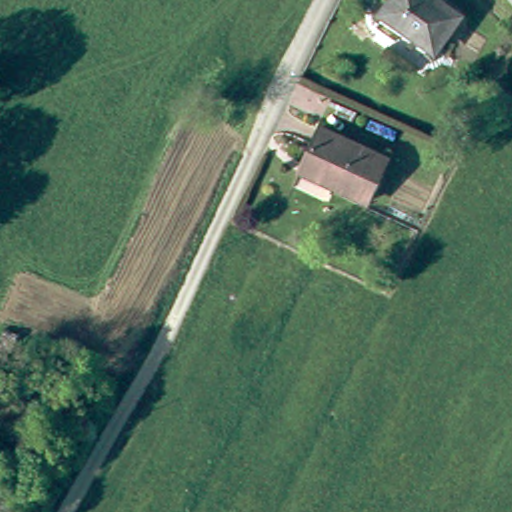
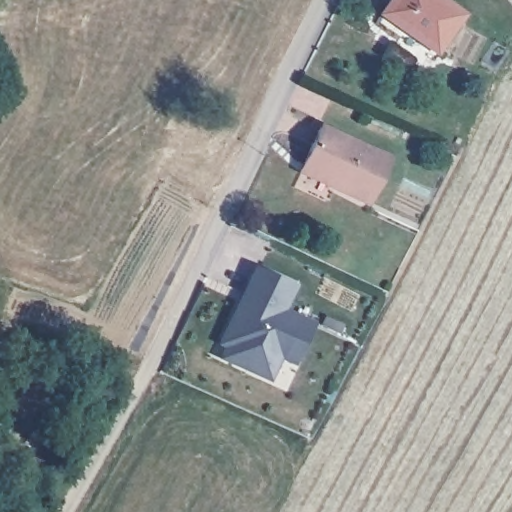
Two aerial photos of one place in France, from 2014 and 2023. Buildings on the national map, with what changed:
unchanged [(442,0),(461,12),(435,49),(384,15),(393,0),(442,0)]
unchanged [(309,169),(313,161),(331,125),(397,157),(378,194),(345,177),(340,184),(309,169)]
new [(286,309),(314,321),(294,366),(281,360),(271,382),(219,359),(225,347),(217,343),(252,266),(296,285),(286,309)]

